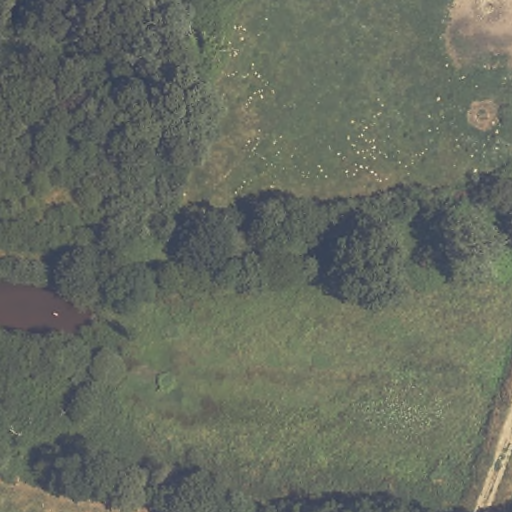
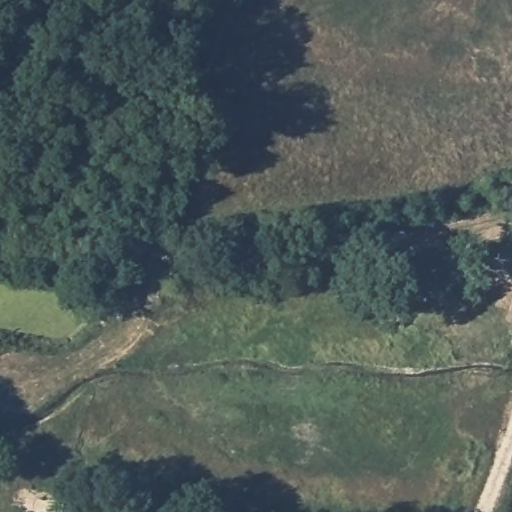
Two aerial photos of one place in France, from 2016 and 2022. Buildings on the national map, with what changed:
[]

